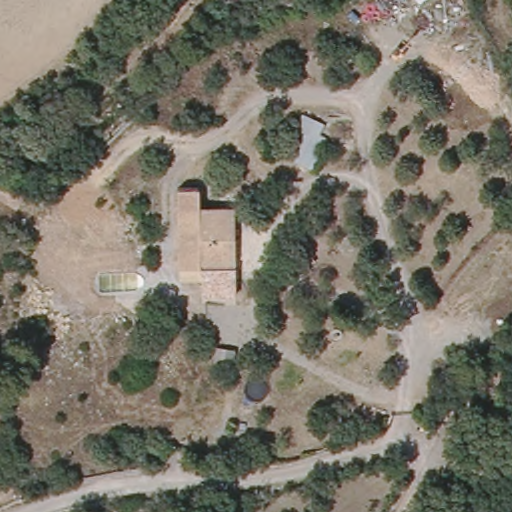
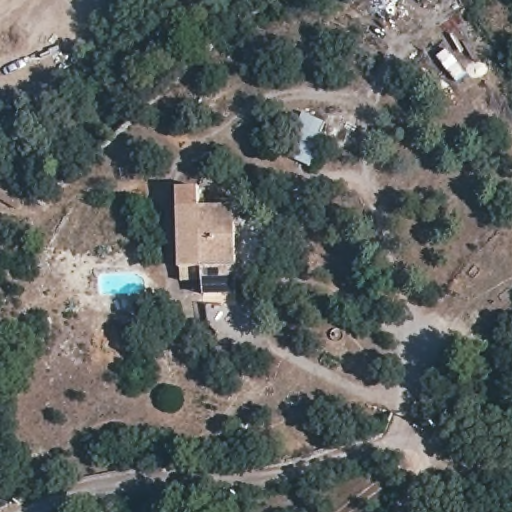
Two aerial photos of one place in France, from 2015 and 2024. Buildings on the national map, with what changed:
unchanged [(18,207),(0,197),(0,175),(28,190),(18,207)]
unchanged [(233,206),(235,277),(199,278),(198,267),(177,268),(172,208),(233,206)]

